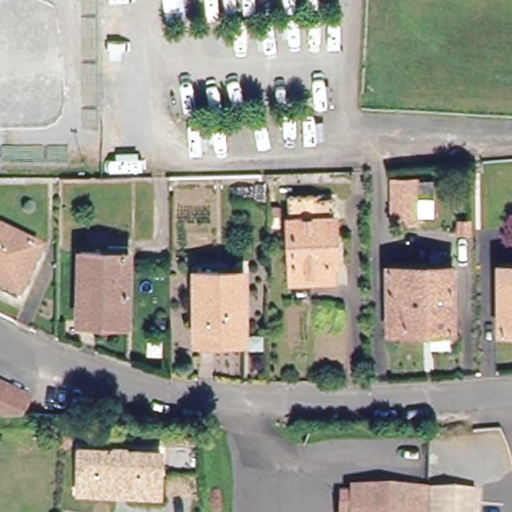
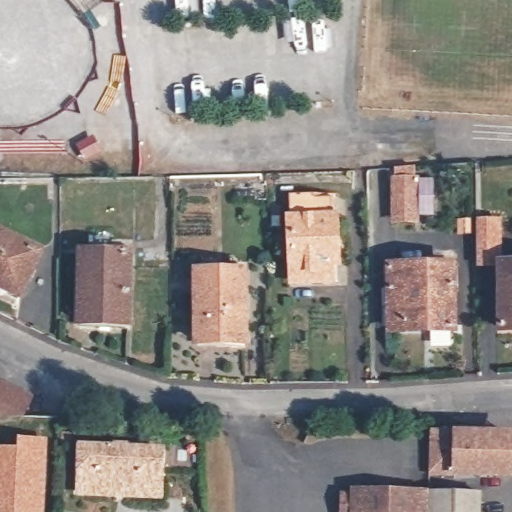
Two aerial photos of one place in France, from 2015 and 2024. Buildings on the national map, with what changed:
unchanged [(416,177),(417,217),(397,218),(396,178),(416,177)]
unchanged [(288,277),(282,195),(325,194),(329,275),(288,277)]
unchanged [(38,253),(19,298),(0,289),(0,235),(38,253)]
unchanged [(122,333),(78,330),(80,264),(111,265),(113,255),(126,253),(122,333)]
unchanged [(504,264),(512,264),(512,330),(505,331),(504,264)]
unchanged [(200,342),(195,269),(244,267),(251,339),(200,342)]
unchanged [(393,333),(388,270),(450,267),(453,331),(393,333)]
unchanged [(32,396),(19,424),(11,424),(0,419),(0,382),(32,396)]
new [(430,476),(433,430),(455,430),(512,431),(512,480),(451,478),(430,476)]
new [(16,447),(18,437),(48,439),(44,512),(0,512),(0,446),(16,447)]
unchanged [(142,493),(78,491),(80,448),(112,449),(112,446),(129,447),(129,449),(160,450),(159,472),(158,493),(142,493)]
unchanged [(427,512),(341,512),(342,496),(353,496),(353,491),(428,494),(427,512)]
unchanged [(478,495),(477,512),(427,512),(428,494),(478,495)]

